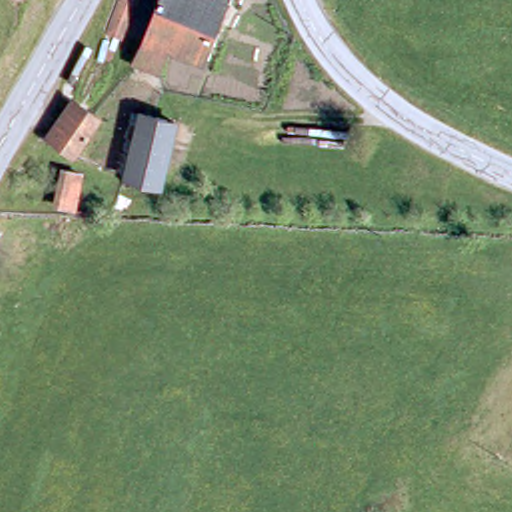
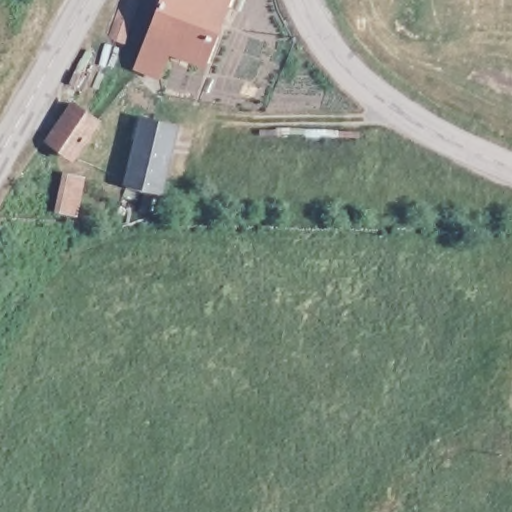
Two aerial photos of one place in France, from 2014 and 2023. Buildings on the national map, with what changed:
unchanged [(173,58),(163,81),(143,73),(169,0),(233,0),(211,69),(173,58)]
unchanged [(72,159),(47,144),(71,106),(98,122),(72,159)]
unchanged [(141,126),(174,133),(166,194),(132,189),(141,126)]

